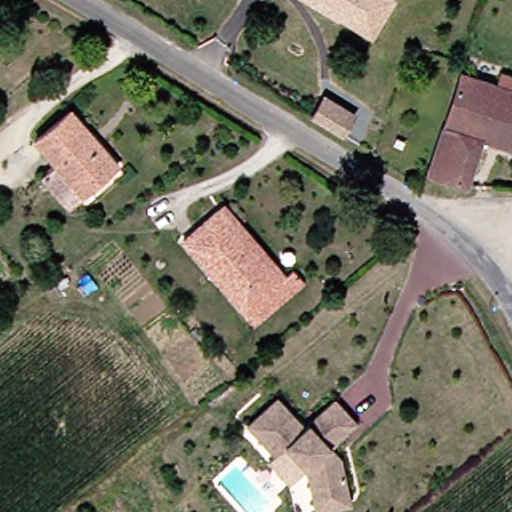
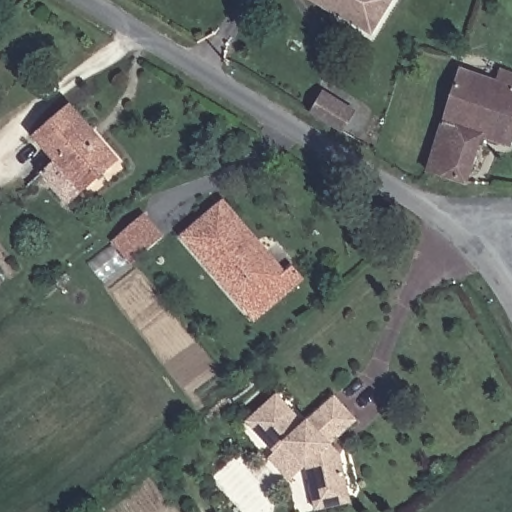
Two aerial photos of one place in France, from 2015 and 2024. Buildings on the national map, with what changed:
unchanged [(309,0),(390,0),(368,35),(336,15),(335,16),(309,0)]
unchanged [(492,82),(495,70),(512,75),(512,112),(503,141),(479,134),(464,183),(455,180),(452,188),(422,178),(457,71),(492,82)]
unchanged [(323,92),(353,111),(342,128),(322,116),(312,109),(323,92)]
unchanged [(36,131),(71,102),(120,159),(85,188),(71,200),(44,169),(58,157),(36,131)]
unchanged [(180,234),(217,202),(277,274),(240,305),(180,234)]
new [(140,218),(159,241),(136,260),(116,236),(140,218)]
unchanged [(301,276),(250,317),(240,305),(277,274),(290,264),(301,276)]
unchanged [(313,508),(311,501),(305,464),(285,439),(274,448),(248,416),(279,391),(304,422),(336,396),(357,421),(330,443),(339,455),(346,495),(347,503),(313,508)]

